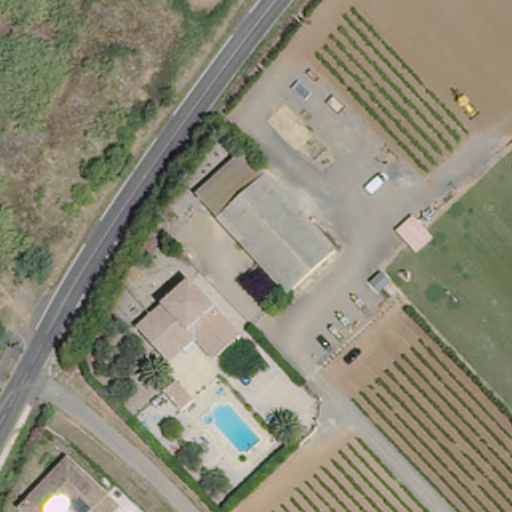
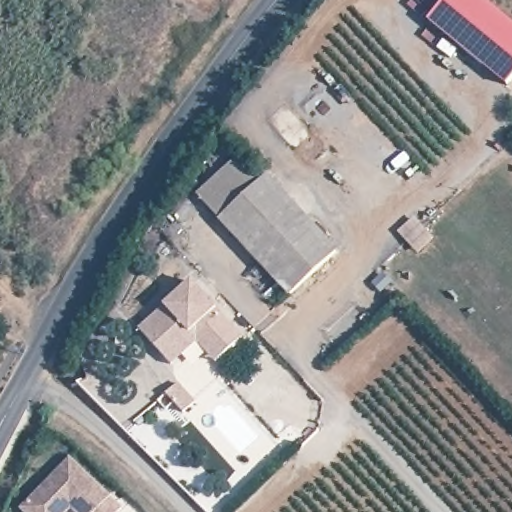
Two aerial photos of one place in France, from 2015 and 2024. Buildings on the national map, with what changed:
new [(512,21),(512,87),(436,22),(454,0),(487,0),(512,21)]
unchanged [(196,196),(246,152),(266,171),(218,217),(196,196)]
unchanged [(335,250),(286,293),(218,217),(266,171),(335,250)]
unchanged [(174,370),(166,362),(142,335),(195,286),(243,341),(224,358),(216,366),(199,346),(174,370)]
unchanged [(118,512),(74,512),(70,507),(65,512),(33,512),(25,503),(73,455),(124,506),(118,512)]

